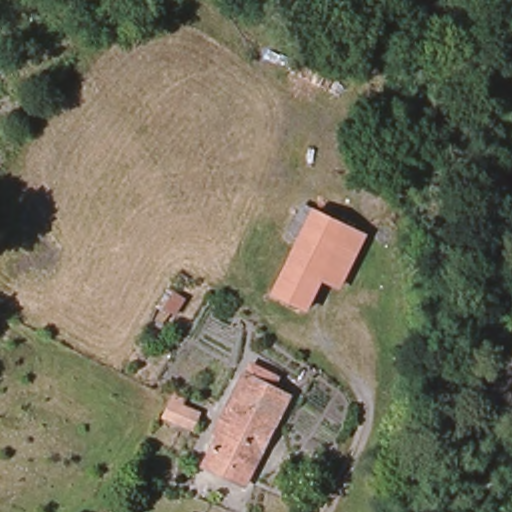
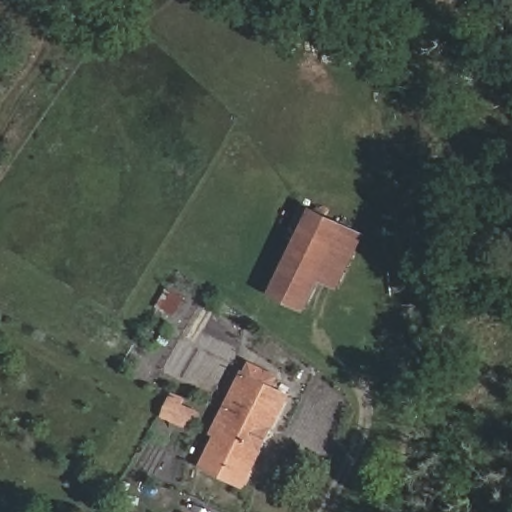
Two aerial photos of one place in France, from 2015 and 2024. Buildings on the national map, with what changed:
unchanged [(320,278),(303,311),(273,294),(313,212),(341,226),(344,228),(320,278)]
unchanged [(363,238),(339,288),(320,278),(344,228),(363,238)]
unchanged [(287,396),(243,485),(205,466),(219,436),(214,433),(243,373),(287,396)]
unchanged [(184,400),(182,406),(200,415),(192,431),(164,417),(175,395),(184,400)]

